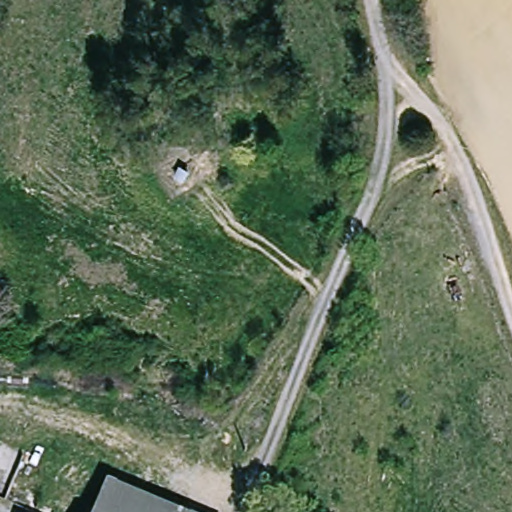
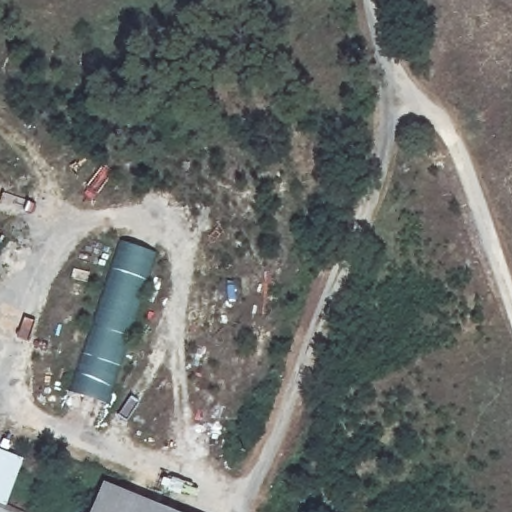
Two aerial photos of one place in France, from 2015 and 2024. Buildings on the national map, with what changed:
new [(122,241),(157,252),(101,422),(65,410),(122,241)]
new [(25,459),(6,503),(0,501),(0,448),(25,459)]
unchanged [(166,505),(163,512),(101,512),(112,483),(166,505)]
unchanged [(184,512),(163,512),(166,505),(184,512)]

